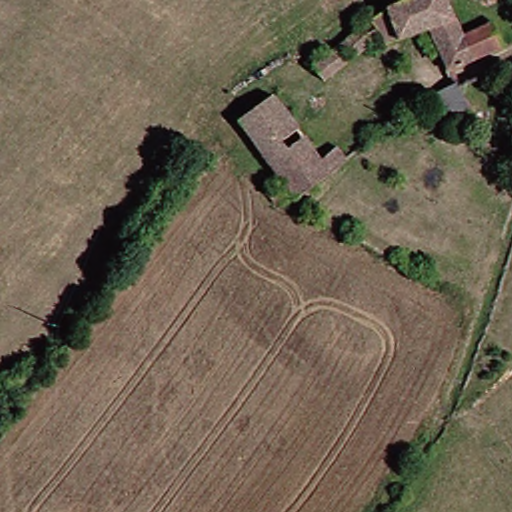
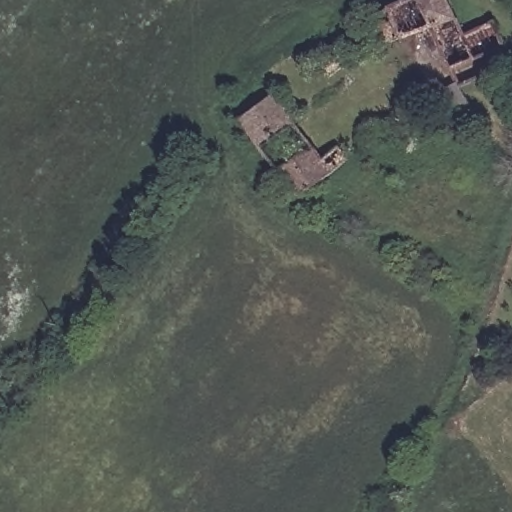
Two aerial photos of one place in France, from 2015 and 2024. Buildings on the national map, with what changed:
unchanged [(457,69),(440,29),(400,48),(395,40),(324,73),(316,55),(383,16),(418,0),(456,0),(472,37),(502,22),(511,48),(457,69)]
unchanged [(463,82),(472,114),(452,121),(442,90),(463,82)]
unchanged [(326,165),(345,154),(355,174),(302,203),(295,197),(287,202),(282,196),(292,189),(250,117),(286,94),(326,165)]

